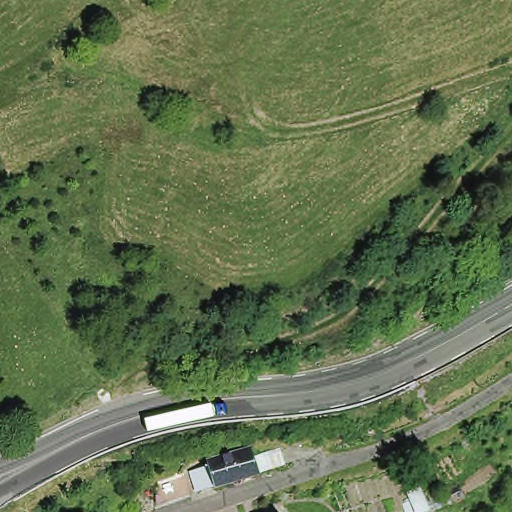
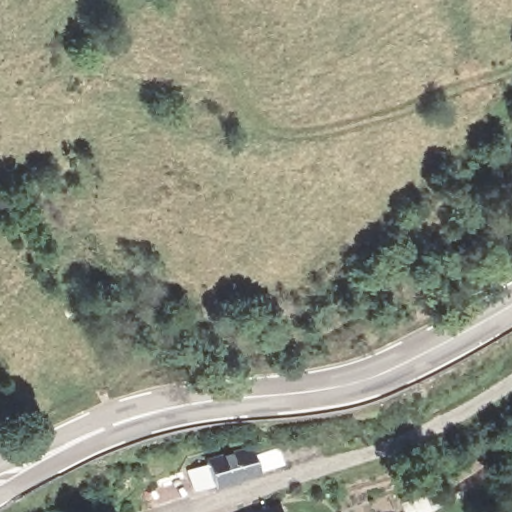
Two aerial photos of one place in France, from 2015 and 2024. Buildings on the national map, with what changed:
unchanged [(258,474),(210,488),(202,466),(252,449),(258,474)]

